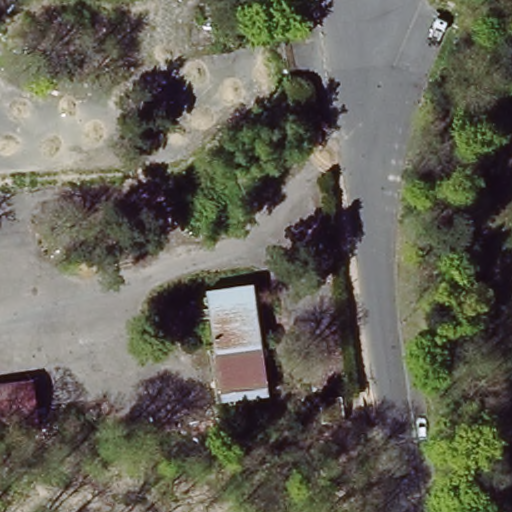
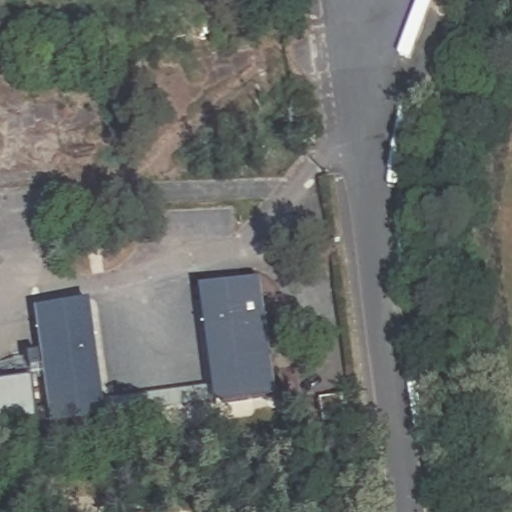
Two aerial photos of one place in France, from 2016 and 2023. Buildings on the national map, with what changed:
unchanged [(267,397),(222,403),(209,292),(254,286),(267,397)]
new [(52,430),(35,310),(89,303),(105,422),(52,430)]
unchanged [(0,429),(0,383),(30,379),(37,424),(0,429)]
unchanged [(345,422),(325,424),(322,400),(343,397),(345,422)]

